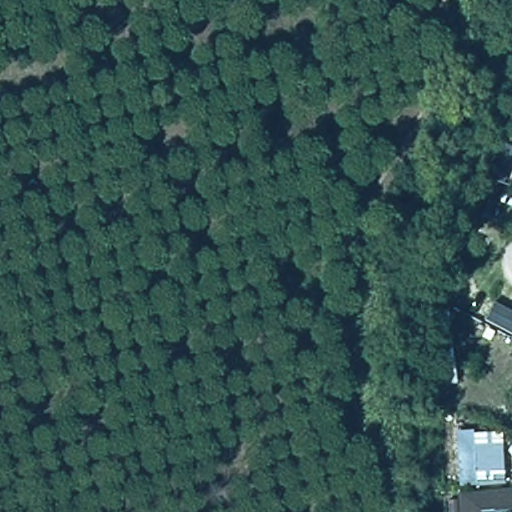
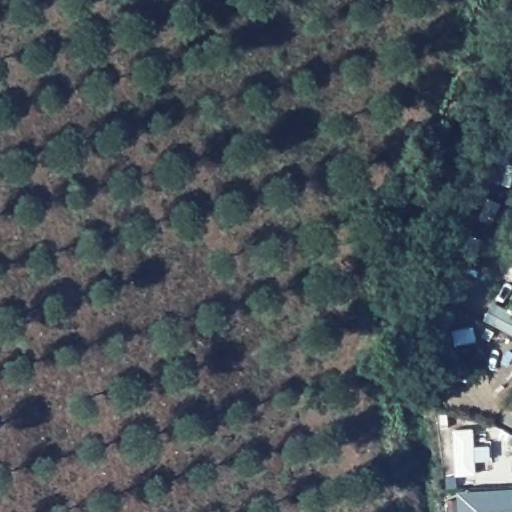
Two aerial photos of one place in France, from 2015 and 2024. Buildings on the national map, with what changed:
unchanged [(437,382),(439,353),(464,355),(463,383),(437,382)]
unchanged [(478,428),(479,445),(494,444),(498,475),(481,475),(481,484),(465,485),(462,430),(478,428)]
unchanged [(463,492),(512,488),(512,512),(464,512),(463,492)]

